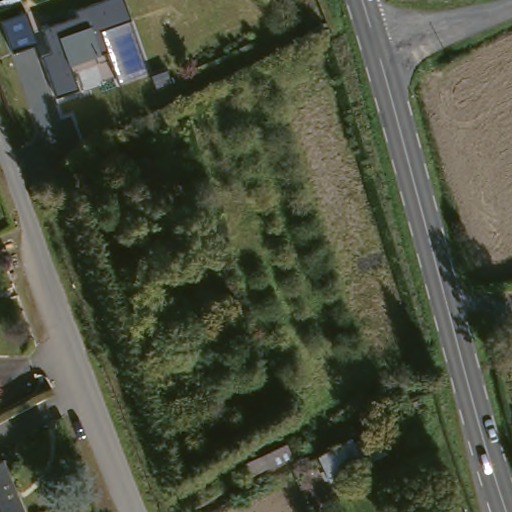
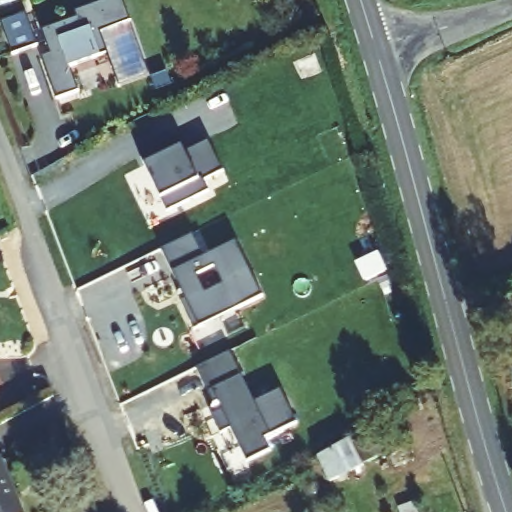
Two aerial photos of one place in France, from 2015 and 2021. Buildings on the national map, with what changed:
unchanged [(51,55),(43,31),(78,18),(75,11),(108,0),(123,0),(130,22),(100,32),(107,54),(71,67),(79,91),(55,99),(41,57),(51,55)]
unchanged [(36,45),(12,54),(3,22),(26,13),(36,45)]
new [(139,156),(180,138),(183,146),(184,149),(209,139),(223,170),(204,179),(209,191),(167,210),(159,197),(143,163),(139,156)]
new [(203,255),(235,240),(263,297),(193,329),(178,297),(183,296),(161,249),(193,234),(203,255)]
new [(229,355),(255,404),(281,390),(299,423),(263,442),(269,454),(251,464),(233,431),(223,437),(213,418),(223,413),(219,405),(215,407),(196,372),(229,355)]
new [(403,420),(409,433),(385,443),(390,455),(363,467),(353,444),(403,420)]
unchanged [(346,438),(368,477),(336,499),(315,466),(346,438)]
unchanged [(34,512),(0,512),(0,466),(17,461),(34,512)]

